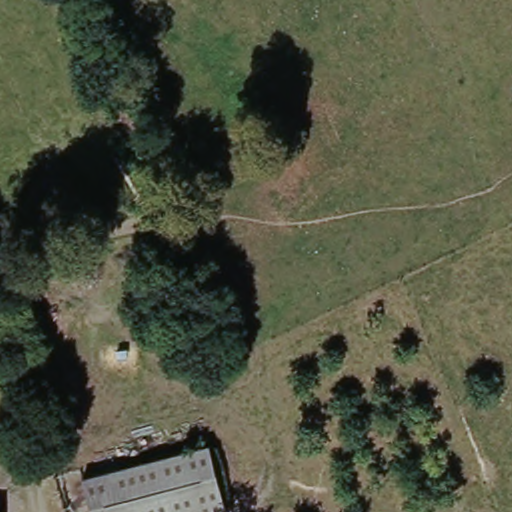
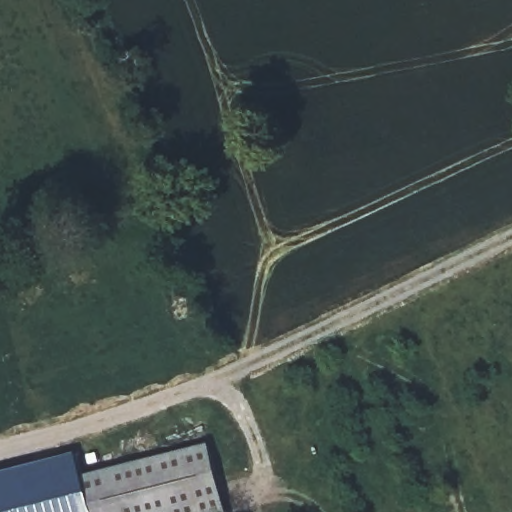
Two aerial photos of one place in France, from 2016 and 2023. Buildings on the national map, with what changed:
unchanged [(85,495),(82,478),(206,445),(211,461),(85,495)]
new [(76,454),(82,478),(85,495),(90,512),(0,512),(0,471),(76,454)]
unchanged [(225,512),(90,512),(85,495),(211,461),(225,512)]

